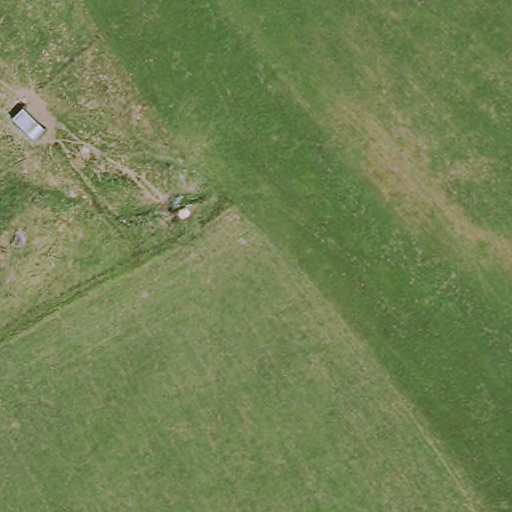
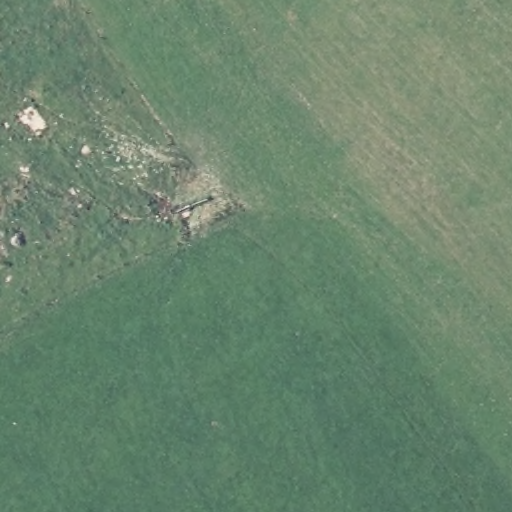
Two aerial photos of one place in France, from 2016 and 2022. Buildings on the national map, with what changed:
unchanged [(29,106),(52,127),(37,142),(14,120),(29,106)]

